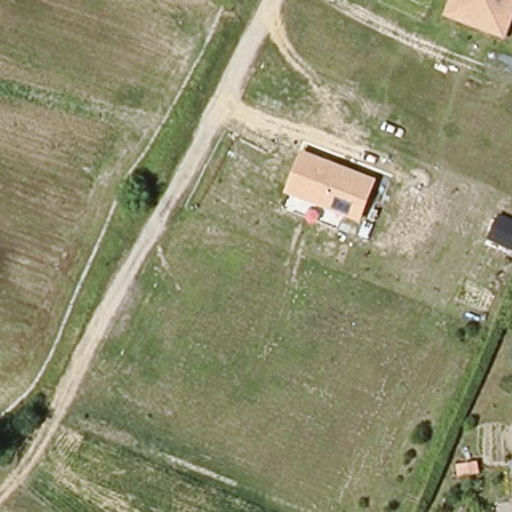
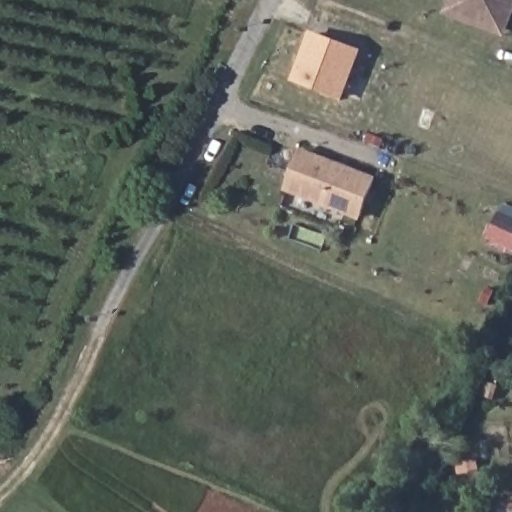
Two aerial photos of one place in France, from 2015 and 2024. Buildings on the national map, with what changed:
unchanged [(512,22),(506,38),(446,15),(452,0),(512,0),(512,22)]
new [(343,101),(292,81),(310,33),(362,53),(343,101)]
unchanged [(359,217),(289,190),(304,152),(374,180),(359,217)]
new [(512,220),(512,248),(493,239),(503,216),(512,220)]

